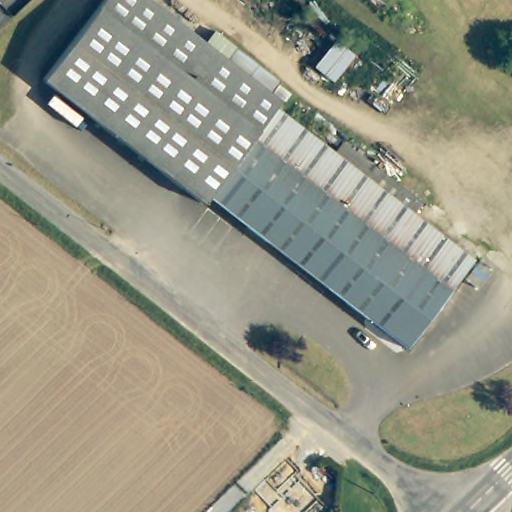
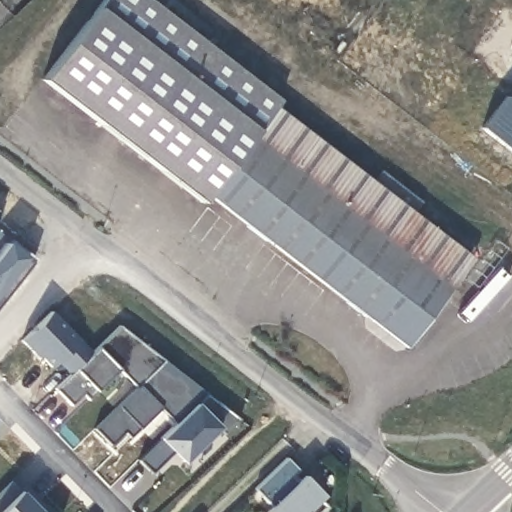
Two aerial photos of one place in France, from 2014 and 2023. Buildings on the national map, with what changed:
unchanged [(91,15),(102,0),(150,0),(280,100),(276,106),(472,259),(402,347),(207,194),(202,201),(42,77),(91,15)]
new [(6,243),(10,239),(34,259),(31,263),(0,302),(0,251),(6,243)]
new [(69,374),(57,361),(51,367),(41,357),(39,358),(21,340),(51,311),(91,352),(69,374)]
new [(119,325),(164,360),(136,387),(119,370),(88,399),(82,394),(71,405),(54,388),(69,374),(119,325)]
new [(175,422),(161,407),(130,438),(124,432),(110,445),(93,429),(164,360),(206,393),(175,422)]
new [(224,434),(218,428),(183,462),(174,452),(154,472),(140,458),(206,393),(240,419),(224,434)]
unchanged [(298,470),(291,478),(296,483),(304,475),(325,496),(319,502),(326,508),(322,512),(266,512),(271,507),(255,488),(287,459),(298,470)]
new [(25,486),(37,498),(33,503),(42,512),(0,512),(0,489),(10,479),(21,490),(25,486)]

